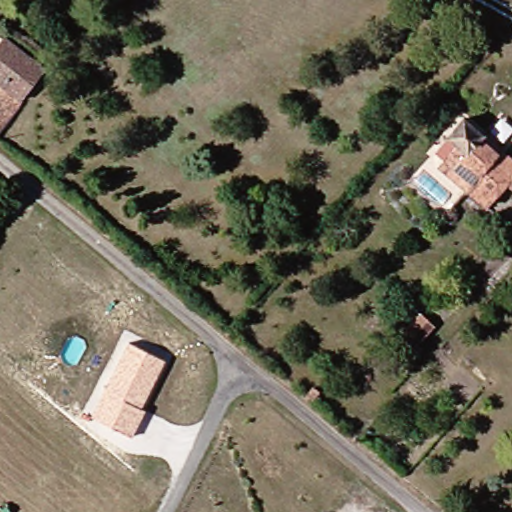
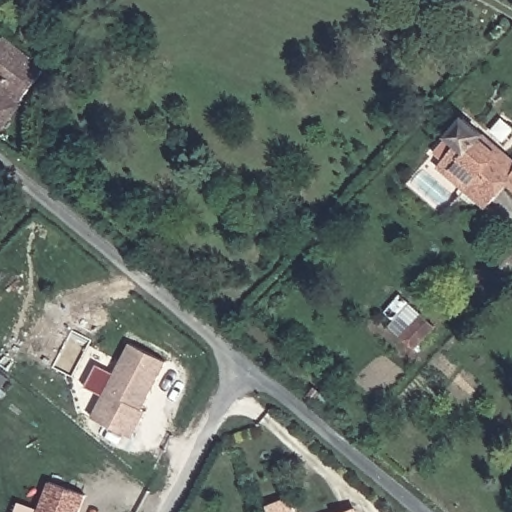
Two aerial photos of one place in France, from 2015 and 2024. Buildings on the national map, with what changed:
unchanged [(0,125),(0,36),(46,71),(0,125)]
unchanged [(444,136),(459,118),(467,125),(501,153),(512,163),(512,191),(503,184),(483,207),(461,190),(425,158),(444,136)]
unchanged [(435,326),(415,348),(402,337),(423,314),(435,326)]
unchanged [(165,362),(141,409),(145,411),(131,437),(92,416),(128,343),(165,362)]
new [(47,483),(83,496),(77,512),(36,512),(47,483)]

